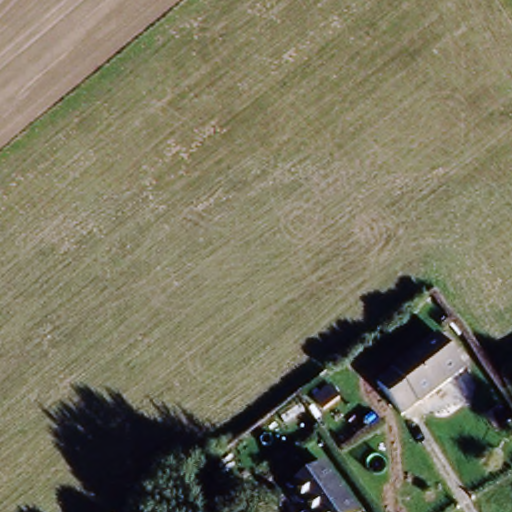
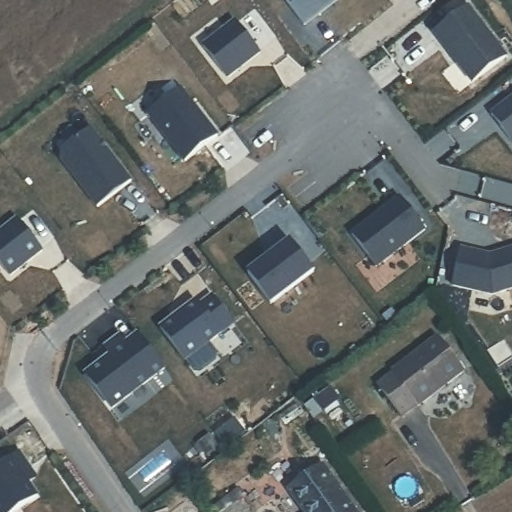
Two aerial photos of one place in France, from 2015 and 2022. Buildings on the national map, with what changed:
new [(305,29),(283,0),(342,0),(305,29)]
new [(471,15),(508,65),(475,90),(437,41),(471,15)]
new [(236,24),(260,55),(227,80),(203,49),(236,24)]
new [(182,91),(219,140),(187,165),(150,117),(182,91)]
new [(512,108),(512,146),(493,122),(512,108)]
new [(64,155),(92,133),(132,186),(99,211),(62,163),(64,155)]
new [(401,200),(426,232),(377,270),(352,237),(401,200)]
new [(45,256),(12,281),(0,265),(0,239),(21,224),(45,256)]
new [(292,245),(316,275),(272,307),(250,277),(292,245)]
new [(463,251),(492,258),(512,252),(512,291),(494,297),(455,288),(463,251)]
new [(195,303),(199,307),(212,297),(233,325),(182,365),(157,331),(195,303)]
unchanged [(383,376),(437,333),(464,367),(408,409),(383,376)]
new [(114,360),(108,353),(122,342),(127,350),(141,340),(166,373),(115,413),(89,380),(114,360)]
new [(32,473),(23,479),(39,501),(24,512),(0,512),(0,473),(21,458),(32,473)]
unchanged [(297,485),(330,462),(364,512),(310,512),(314,510),(297,485)]

